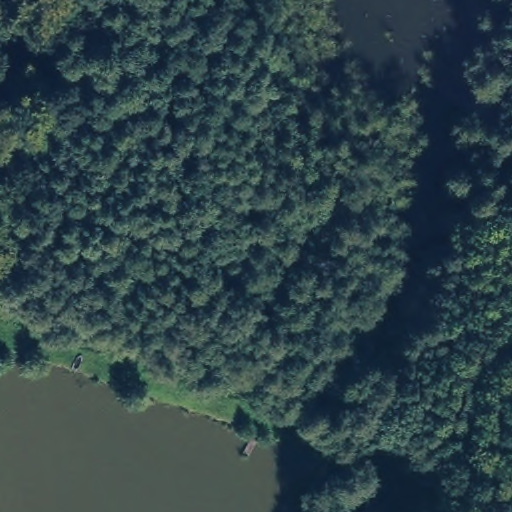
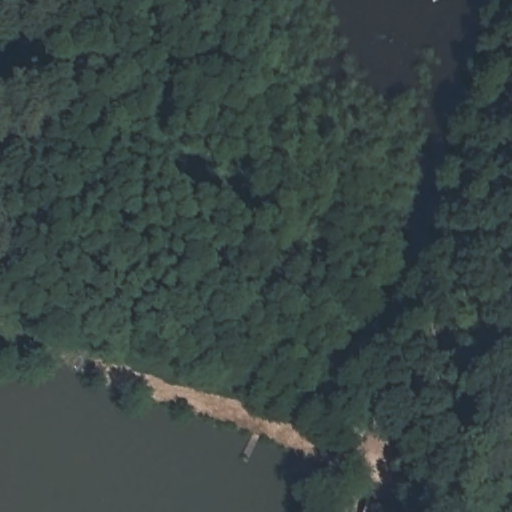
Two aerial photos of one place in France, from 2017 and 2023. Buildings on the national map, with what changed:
unchanged [(416,512),(424,498),(473,512),(416,512)]

